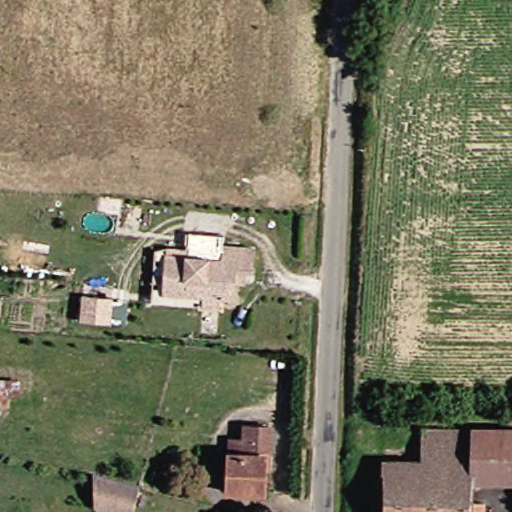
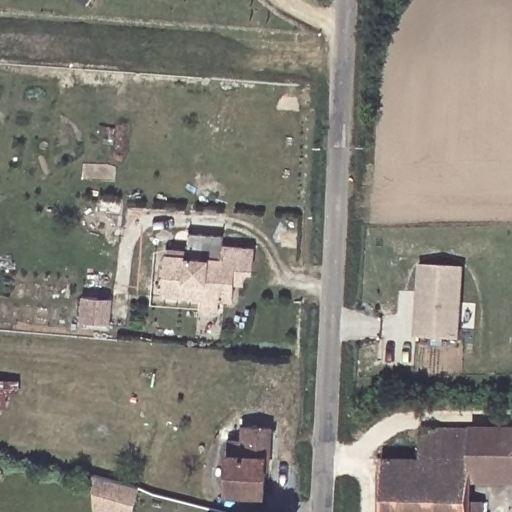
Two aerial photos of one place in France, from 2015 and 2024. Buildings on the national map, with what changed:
unchanged [(162,294),(166,256),(222,261),(223,248),(255,250),(253,274),(235,272),(233,302),(162,294)]
new [(419,265),(463,267),(459,340),(415,337),(419,265)]
unchanged [(1,381),(0,406),(0,380),(1,381)]
unchanged [(218,456),(234,455),(234,427),(263,426),(265,460),(257,461),(257,493),(220,493),(218,456)]
unchanged [(377,462),(417,461),(417,433),(512,433),(512,480),(467,483),(466,512),(375,512),(377,462)]
unchanged [(133,486),(127,512),(93,512),(87,511),(85,475),(133,486)]

